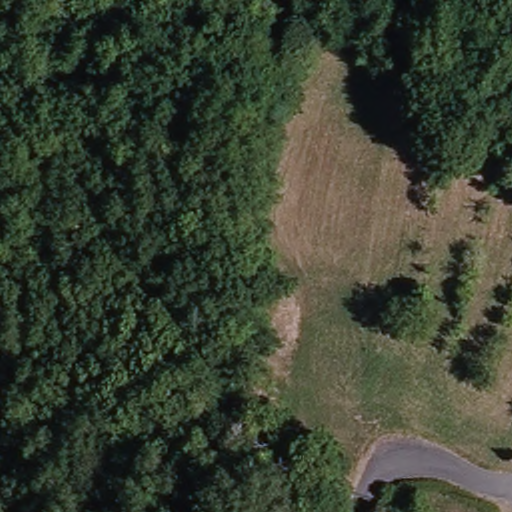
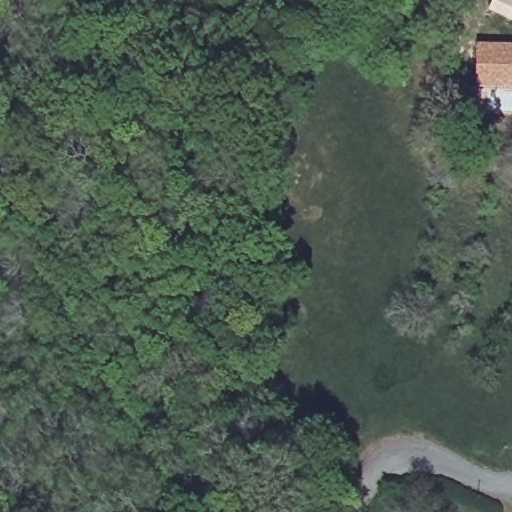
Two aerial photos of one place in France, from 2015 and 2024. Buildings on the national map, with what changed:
new [(474,90),(476,46),(512,47),(512,90),(474,90)]

